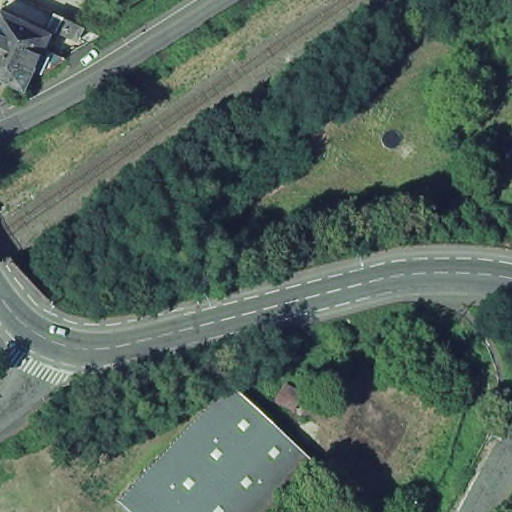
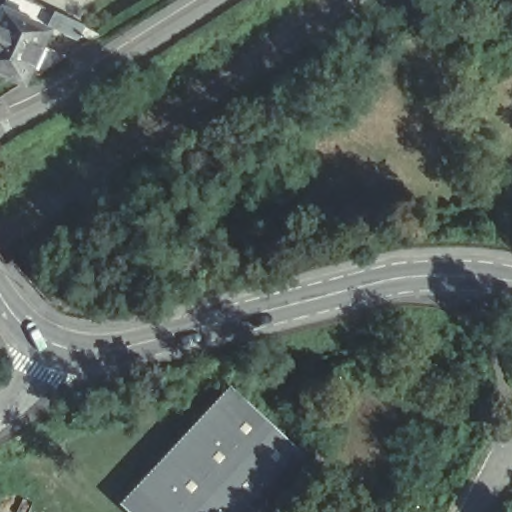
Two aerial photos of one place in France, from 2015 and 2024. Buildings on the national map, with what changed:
unchanged [(21,0),(20,2),(16,0),(21,0)]
unchanged [(66,41),(36,26),(42,12),(73,27),(66,41)]
unchanged [(45,63),(26,75),(17,70),(10,83),(0,79),(0,13),(35,30),(29,43),(55,57),(45,63)]
unchanged [(223,385),(310,467),(269,512),(122,512),(112,503),(223,385)]

